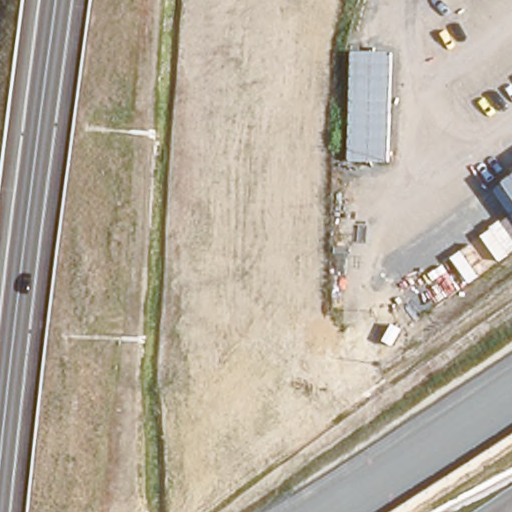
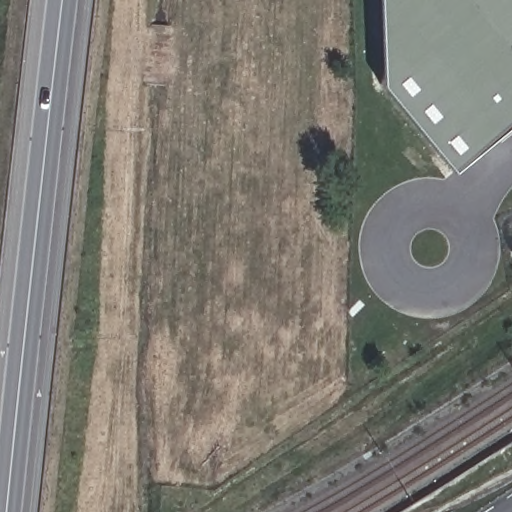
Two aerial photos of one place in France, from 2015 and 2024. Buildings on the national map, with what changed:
new [(379,0),(512,0),(512,134),(466,172),(381,78),(379,0)]
demolished [(349,164),(352,51),(391,51),(389,165),(349,164)]
demolished [(385,270),(512,180),(512,254),(420,318),(385,270)]

